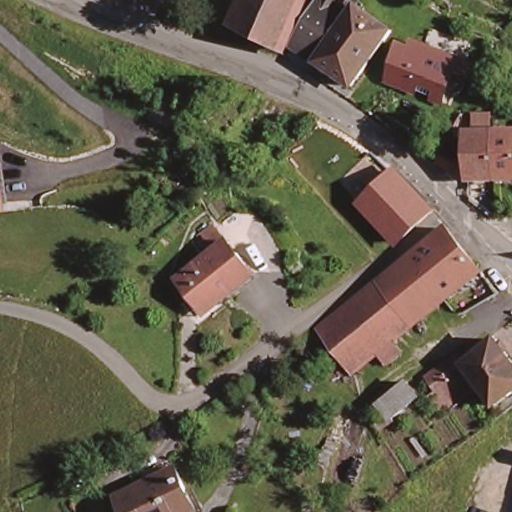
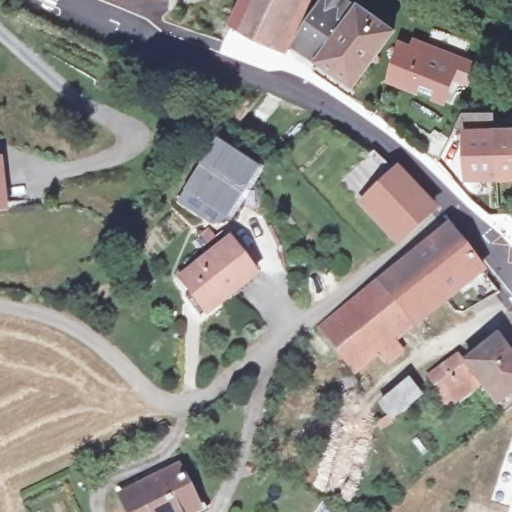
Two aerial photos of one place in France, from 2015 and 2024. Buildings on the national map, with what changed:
unchanged [(315,0),(291,54),(288,52),(262,41),(243,32),(254,0),(315,0)]
unchanged [(369,0),(394,17),(399,20),(366,74),(298,56),(330,0),(369,0)]
unchanged [(466,65),(448,102),(424,89),(389,87),(404,46),(434,51),(466,65)]
unchanged [(512,179),(499,179),(469,178),(470,131),(498,132),(512,132),(512,179)]
new [(201,164),(213,143),(217,142),(256,166),(243,190),(201,164)]
unchanged [(9,212),(0,213),(0,159),(2,159),(9,212)]
new [(198,168),(239,196),(226,217),(184,191),(198,168)]
unchanged [(434,209),(395,237),(358,201),(394,171),(434,209)]
unchanged [(353,372),(319,325),(324,321),(357,296),(434,240),(452,221),(488,270),(401,335),(413,351),(395,365),(384,348),(366,363),(353,372)]
unchanged [(206,320),(174,278),(212,251),(203,239),(218,227),(228,240),(231,239),(261,277),(206,320)]
unchanged [(503,341),(512,354),(512,398),(501,406),(474,373),(443,397),(427,375),(462,349),(472,363),(503,341)]
unchanged [(407,378),(429,397),(395,425),(379,402),(407,378)]
unchanged [(181,465),(201,508),(193,512),(125,512),(118,495),(181,465)]

